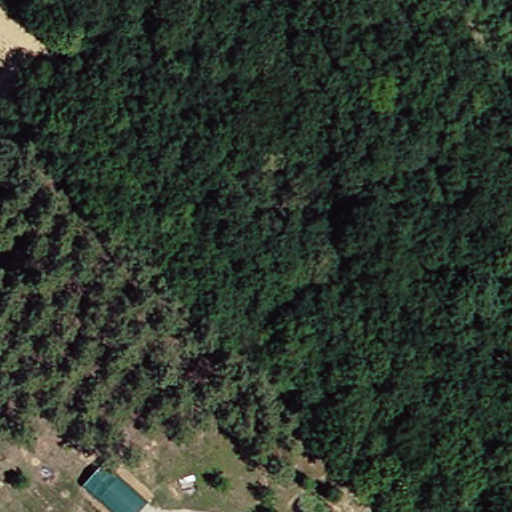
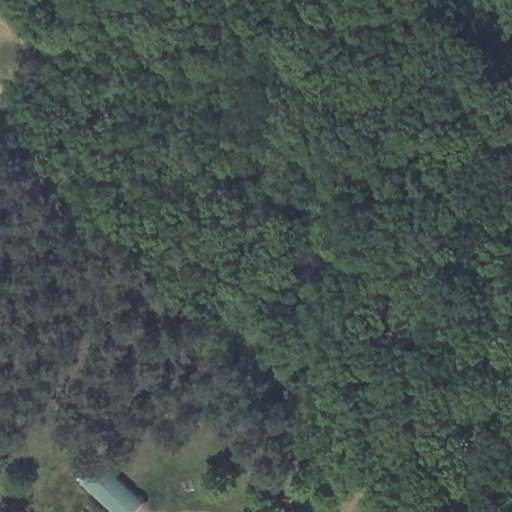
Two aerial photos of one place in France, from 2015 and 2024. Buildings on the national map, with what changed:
unchanged [(103,497),(118,481),(145,505),(138,512),(119,512),(103,497)]

